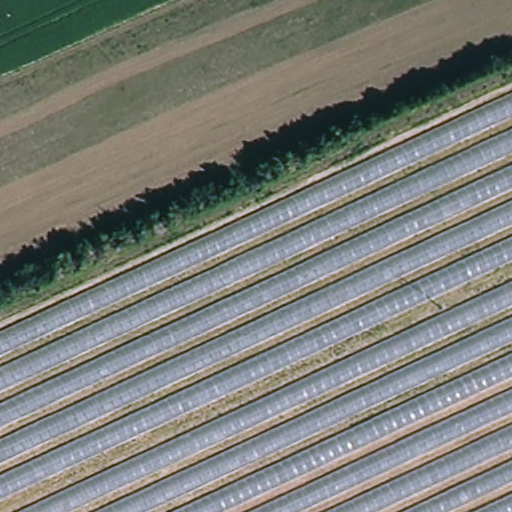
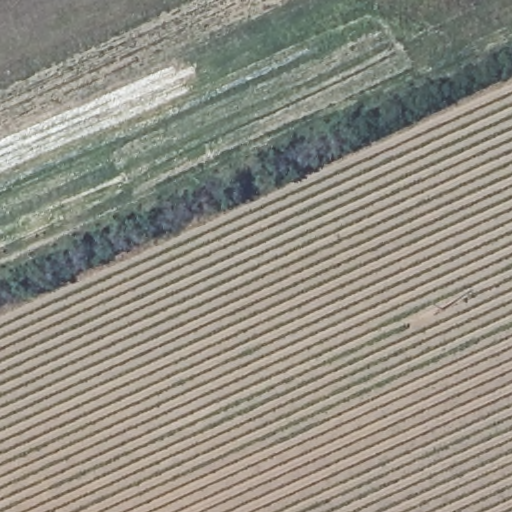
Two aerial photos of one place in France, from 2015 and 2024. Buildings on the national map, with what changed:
demolished [(0,512),(0,332),(512,89),(512,512),(0,512)]

